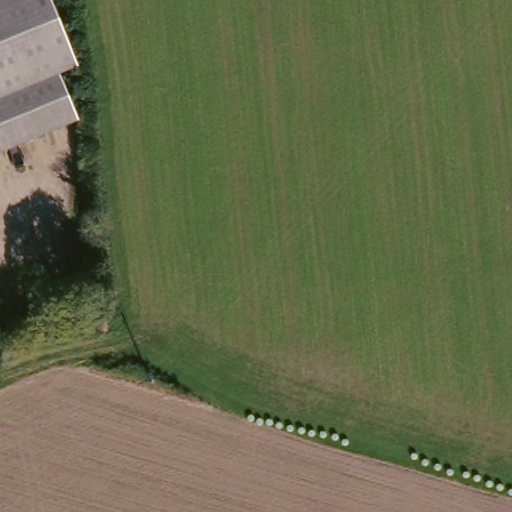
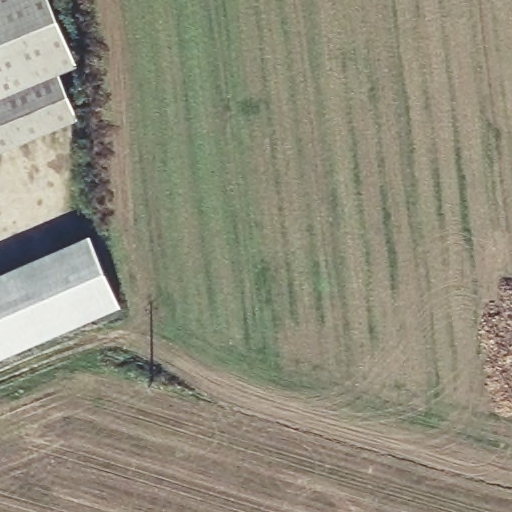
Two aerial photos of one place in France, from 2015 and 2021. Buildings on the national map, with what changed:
unchanged [(60,74),(79,120),(0,152),(0,0),(51,0),(78,66),(60,74)]
new [(126,312),(0,364),(0,283),(97,243),(126,312)]

